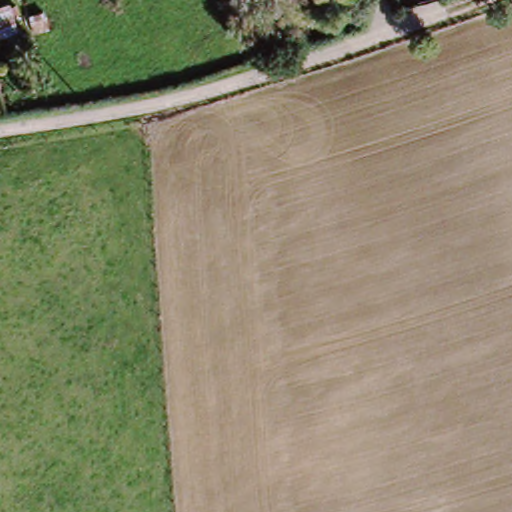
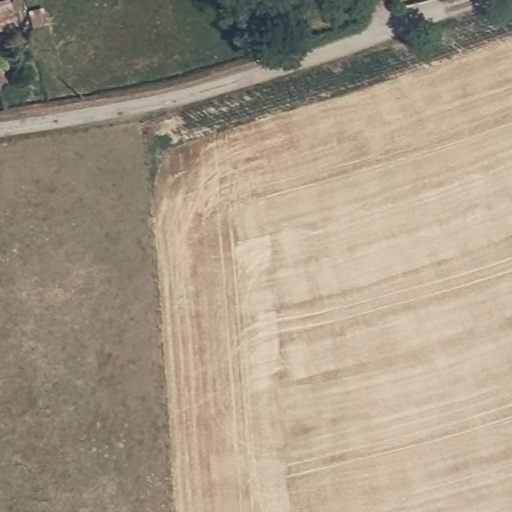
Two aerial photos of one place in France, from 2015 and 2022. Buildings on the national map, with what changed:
unchanged [(0,33),(0,4),(9,1),(17,27),(0,33)]

